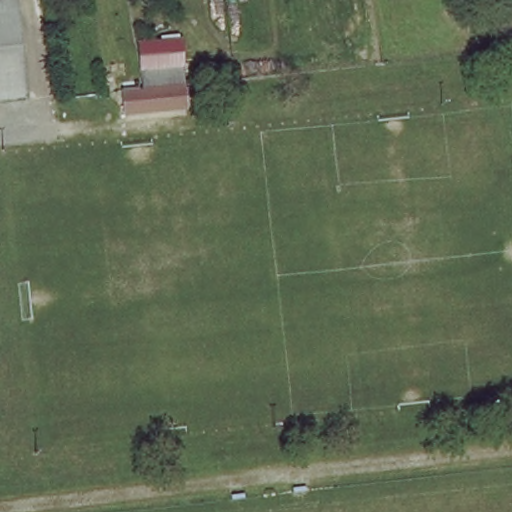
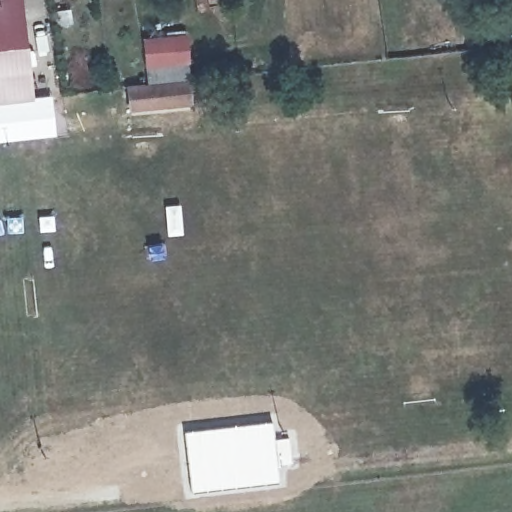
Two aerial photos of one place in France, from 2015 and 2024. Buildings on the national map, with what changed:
unchanged [(0,97),(0,0),(23,0),(32,94),(0,97)]
unchanged [(189,41),(192,65),(152,69),(149,46),(189,41)]
unchanged [(136,108),(135,92),(152,90),(150,73),(192,68),(194,85),(196,103),(136,108)]
new [(273,419),(275,436),(290,435),(292,462),(279,463),(280,480),(188,492),(182,429),(273,419)]

